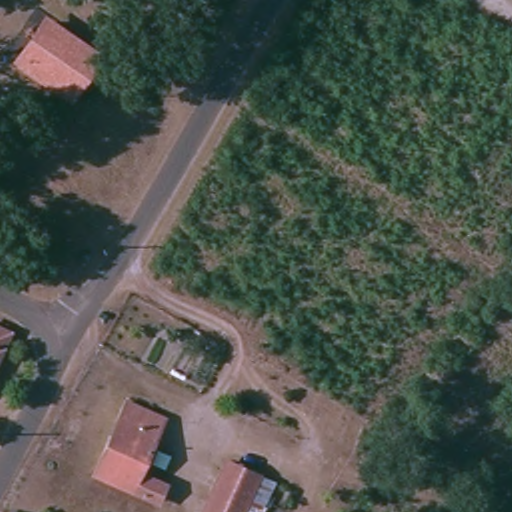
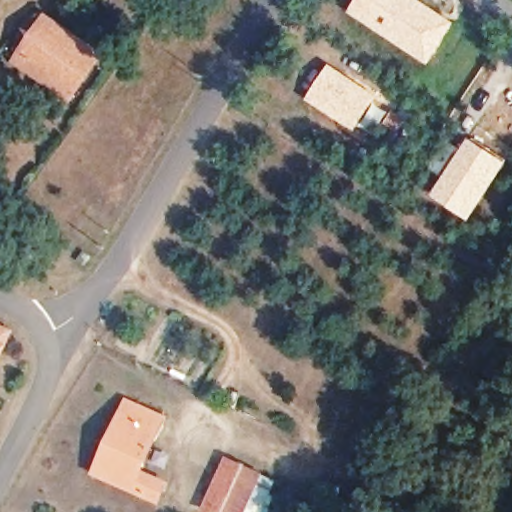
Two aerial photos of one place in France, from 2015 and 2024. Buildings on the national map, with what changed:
new [(353,0),(418,0),(453,22),(426,65),(345,11),(353,0)]
unchanged [(15,70),(49,17),(107,61),(75,110),(15,70)]
new [(327,64),(376,97),(353,131),(303,99),(327,64)]
new [(468,137),(507,162),(469,221),(430,195),(468,137)]
unchanged [(11,329),(0,357),(0,325),(11,329)]
unchanged [(167,482),(160,502),(150,497),(97,471),(130,406),(162,422),(142,469),(159,477),(167,482)]
unchanged [(222,462),(255,477),(275,487),(263,511),(244,502),(239,512),(200,512),(200,511),(222,462)]

